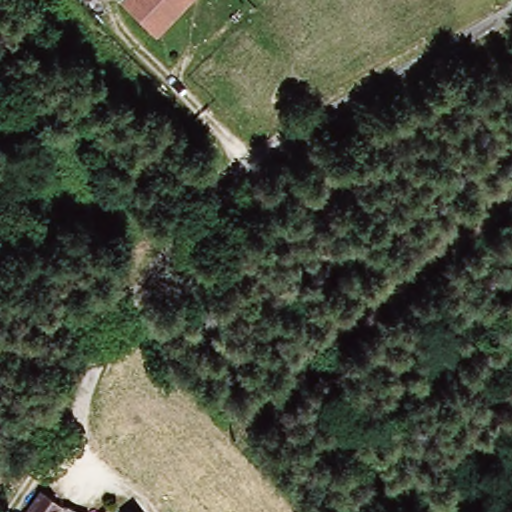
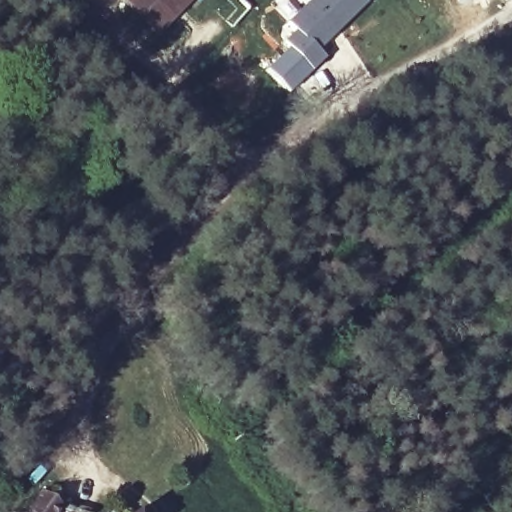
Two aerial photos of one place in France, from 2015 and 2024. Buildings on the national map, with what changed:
unchanged [(126,1),(128,0),(193,0),(158,33),(126,1)]
new [(281,43),(295,30),(286,23),(310,0),(361,0),(365,4),(316,51),(324,59),(310,72),(281,43)]
unchanged [(63,507),(59,512),(24,512),(40,489),(63,507)]
unchanged [(133,512),(124,512),(130,508),(133,512)]

